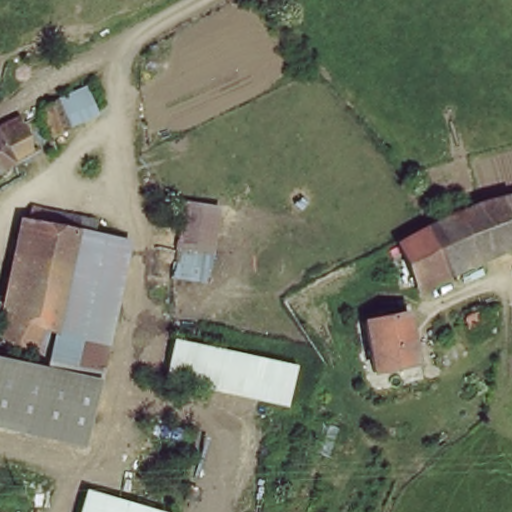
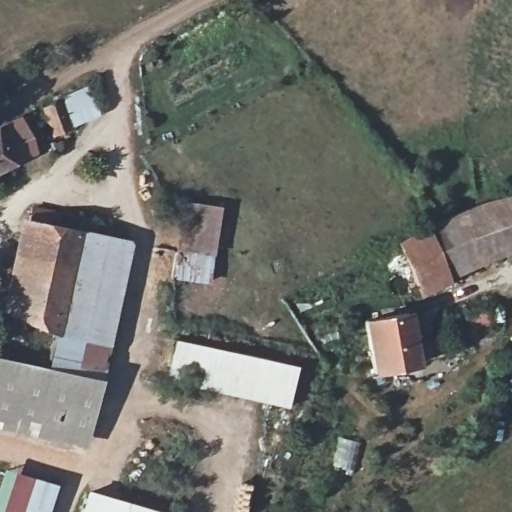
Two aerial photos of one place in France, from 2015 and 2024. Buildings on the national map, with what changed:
unchanged [(101,120),(55,141),(40,110),(88,90),(101,120)]
unchanged [(0,142),(0,126),(22,115),(33,149),(10,160),(0,142)]
unchanged [(10,160),(0,166),(0,142),(10,160)]
unchanged [(223,202),(211,283),(172,280),(184,199),(223,202)]
unchanged [(451,221),(474,210),(512,199),(512,248),(471,266),(451,221)]
unchanged [(97,261),(89,307),(68,303),(58,348),(43,345),(40,356),(4,346),(37,221),(81,231),(79,242),(100,246),(97,261)]
unchanged [(471,266),(410,291),(393,250),(451,221),(471,266)]
unchanged [(130,251),(118,311),(89,307),(97,261),(100,246),(130,251)]
unchanged [(118,311),(109,358),(81,353),(58,348),(68,303),(89,307),(118,311)]
unchanged [(486,318),(464,321),(462,310),(484,307),(486,318)]
unchanged [(366,322),(406,313),(418,364),(377,373),(366,322)]
unchanged [(173,334),(300,360),(290,406),(161,382),(173,334)]
unchanged [(102,377),(86,446),(0,428),(0,354),(102,377)]
new [(57,484),(47,512),(0,512),(0,471),(1,467),(57,484)]
unchanged [(82,512),(88,490),(170,512),(82,512)]

